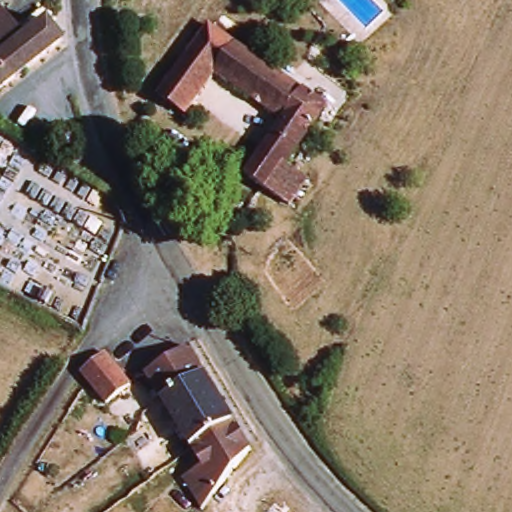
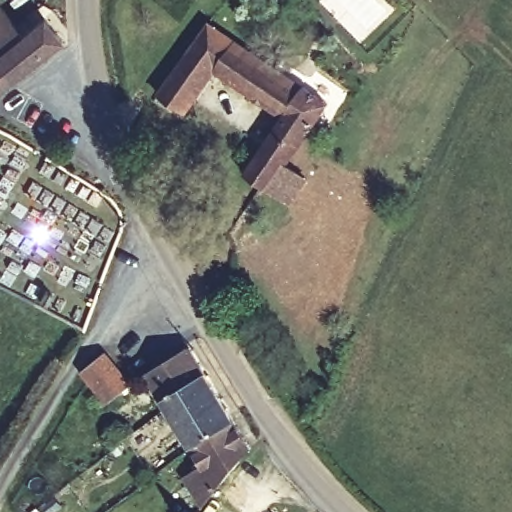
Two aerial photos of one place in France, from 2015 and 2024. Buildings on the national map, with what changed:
unchanged [(9,0),(26,25),(42,53),(0,86),(0,0),(9,0)]
unchanged [(26,25),(52,6),(70,30),(42,53),(26,25)]
unchanged [(279,116),(214,72),(183,117),(158,98),(211,23),(323,101),(283,166),(300,179),(284,205),(243,175),(279,116)]
unchanged [(199,463),(148,367),(186,345),(254,446),(198,510),(181,472),(199,463)]
unchanged [(127,388),(107,398),(101,401),(86,375),(103,354),(109,353),(127,388)]

